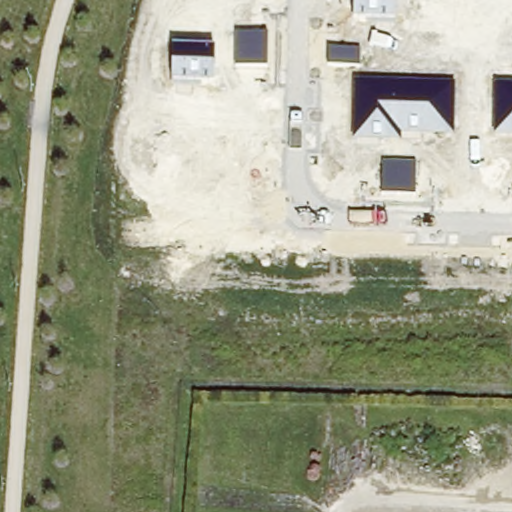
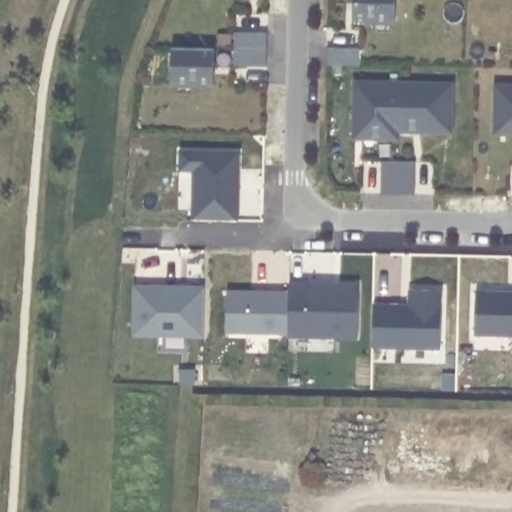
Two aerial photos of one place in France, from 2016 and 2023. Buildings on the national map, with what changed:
unchanged [(395,25),(368,26),(369,19),(353,19),(353,0),(395,0),(395,25)]
demolished [(512,1),(512,41),(497,39),(503,0),(506,0),(512,1)]
unchanged [(235,30),(269,31),(268,66),(235,64),(235,30)]
unchanged [(172,47),(215,48),(215,85),(171,88),(172,47)]
new [(327,47),(360,48),(359,66),(327,65),(327,47)]
unchanged [(355,81),(455,84),(456,136),(400,134),(400,143),(352,141),(355,81)]
unchanged [(512,85),(512,135),(495,135),(496,85),(512,85)]
new [(180,149),(240,150),(239,220),(192,219),(193,171),(180,170),(180,149)]
unchanged [(416,163),(415,195),(380,193),(382,160),(416,163)]
new [(359,339),(289,337),(289,335),(228,333),(229,289),(290,291),(290,281),(360,282),(359,339)]
new [(206,337),(135,335),(135,285),(206,285),(206,337)]
new [(512,336),(475,335),(476,290),(512,291),(512,336)]

